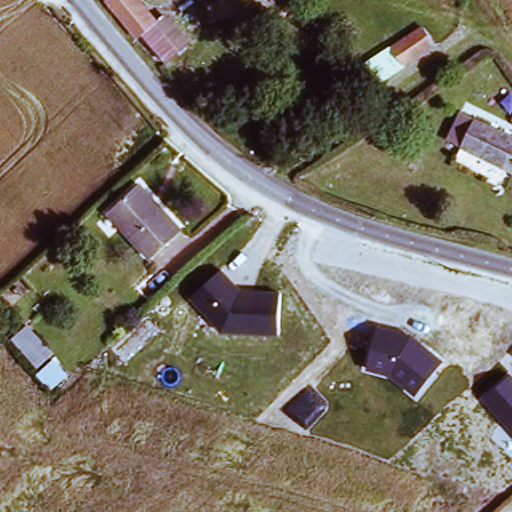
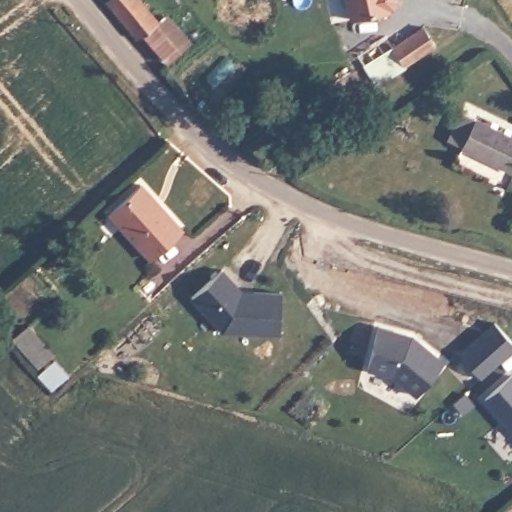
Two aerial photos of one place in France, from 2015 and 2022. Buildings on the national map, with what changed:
unchanged [(108,0),(138,0),(156,22),(137,37),(107,1),(108,0)]
new [(397,0),(393,6),(389,7),(390,10),(351,18),(347,0),(397,0)]
unchanged [(186,46),(162,67),(137,37),(156,22),(164,17),(186,46)]
unchanged [(371,59),(422,21),(435,46),(415,59),(385,79),(371,59)]
unchanged [(465,112),(512,136),(512,168),(452,137),(465,112)]
unchanged [(112,217),(142,188),(173,221),(142,250),(112,217)]
unchanged [(244,292),(283,294),(283,335),(220,330),(190,301),(221,270),(244,292)]
new [(512,342),(512,351),(480,379),(460,354),(494,322),(512,342)]
unchanged [(413,335),(445,364),(418,396),(395,376),(368,370),(378,326),(413,335)]
unchanged [(12,344),(27,331),(51,358),(37,344),(36,372),(12,344)]
unchanged [(57,381),(41,396),(30,381),(45,367),(57,381)]
unchanged [(511,376),(512,376),(512,434),(482,401),(511,376)]

